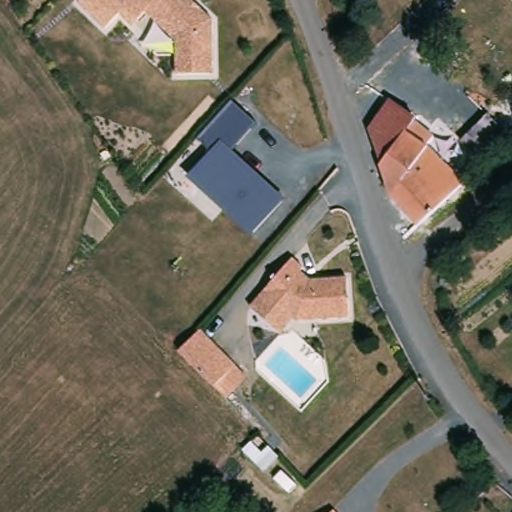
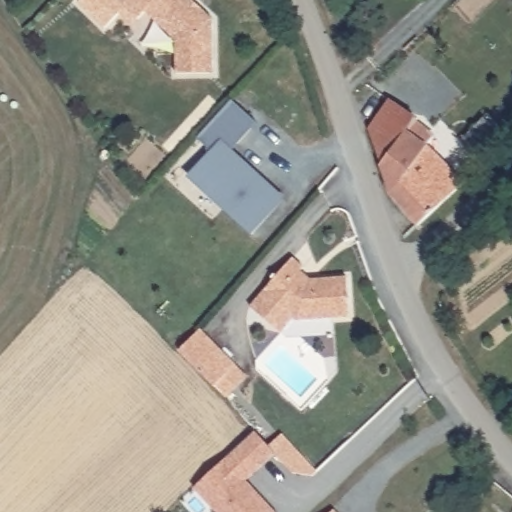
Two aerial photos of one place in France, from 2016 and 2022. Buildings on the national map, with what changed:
unchanged [(117,0),(187,0),(211,23),(211,77),(175,78),(175,45),(145,15),(136,23),(115,2),(117,0)]
unchanged [(186,175),(210,149),(195,138),(230,100),(254,122),(231,149),(283,198),(250,235),(186,175)]
unchanged [(387,195),(378,165),(368,129),(386,100),(413,116),(432,136),(427,146),(441,160),(463,183),(415,225),(387,195)]
unchanged [(267,289),(296,256),(307,266),(304,270),(314,279),(350,273),(356,313),(300,319),(298,318),(285,332),(255,306),(268,291),(267,289)]
unchanged [(226,399),(213,388),(180,353),(200,331),(236,365),(250,377),(226,399)]
new [(254,431),(268,447),(281,433),(317,470),(312,474),(291,472),(274,453),(246,480),(277,512),(216,512),(193,488),(254,431)]
demolished [(266,471),(243,447),(260,431),(282,456),(266,471)]
unchanged [(340,512),(334,512),(337,509),(340,512)]

